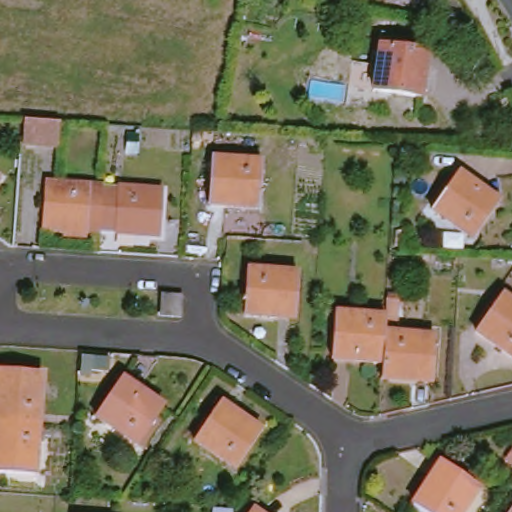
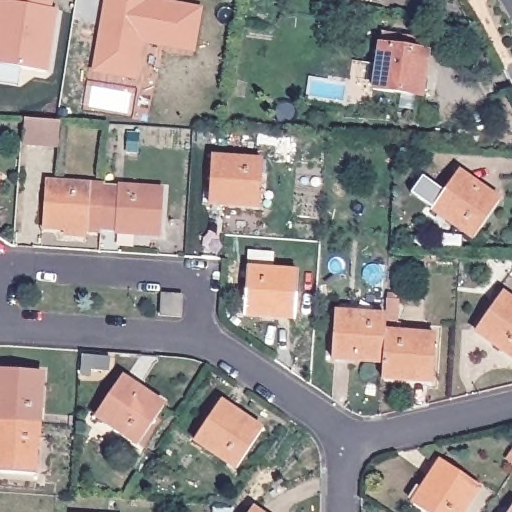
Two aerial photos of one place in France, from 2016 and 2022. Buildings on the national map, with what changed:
new [(57,10),(48,70),(0,64),(0,2),(10,3),(10,0),(53,0),(51,9),(57,10)]
new [(196,52),(145,43),(138,81),(92,73),(104,0),(158,0),(203,8),(196,52)]
unchanged [(345,91),(348,71),(375,75),(383,37),(425,42),(422,55),(431,58),(424,103),(345,91)]
unchanged [(24,116),(60,119),(58,145),(22,143),(24,116)]
unchanged [(210,204),(213,159),(262,162),(260,206),(210,204)]
unchanged [(440,216),(463,179),(505,206),(480,242),(440,216)]
unchanged [(107,231),(50,227),(52,183),(110,187),(107,231)]
unchanged [(110,187),(168,190),(165,235),(107,231),(110,187)]
unchanged [(245,314),(247,270),(298,273),(296,317),(245,314)]
unchanged [(162,314),(164,294),(185,295),(183,315),(162,314)]
unchanged [(478,332),(503,295),(512,301),(512,355),(478,332)]
unchanged [(389,364),(340,362),(340,319),(391,320),(391,305),(404,305),(403,329),(390,328),(390,335),(389,364)]
unchanged [(389,364),(390,335),(441,338),(439,383),(388,381),(389,364)]
unchanged [(1,427),(4,377),(50,379),(46,429),(1,427)]
unchanged [(102,415),(126,380),(166,407),(143,442),(102,415)]
unchanged [(202,444),(225,408),(266,434),(242,471),(202,444)]
unchanged [(43,478),(0,475),(0,443),(1,427),(46,429),(43,478)]
unchanged [(417,508),(445,468),(481,492),(467,512),(424,512),(417,508)]

